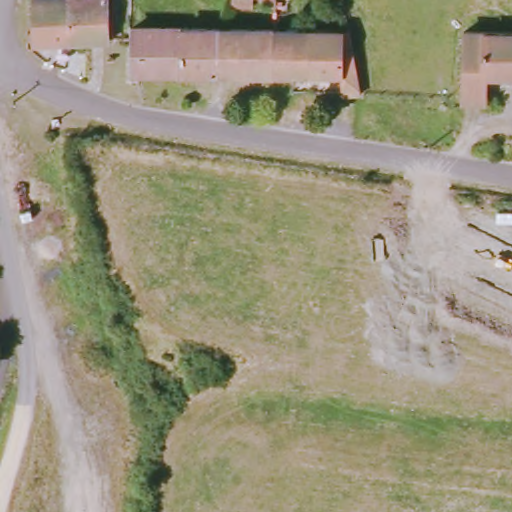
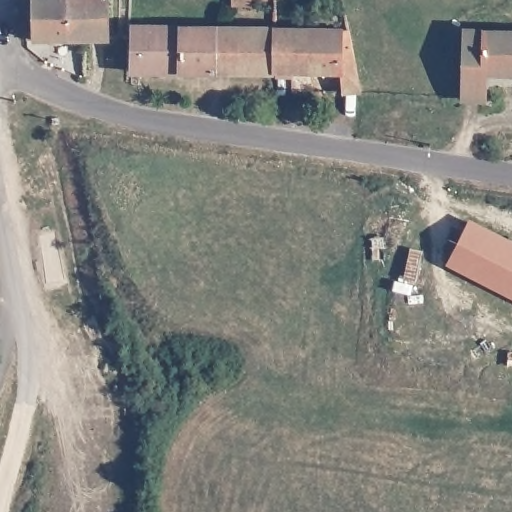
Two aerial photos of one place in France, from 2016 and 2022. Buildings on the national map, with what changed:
unchanged [(31,0),(106,0),(106,43),(34,43),(31,0)]
unchanged [(130,27),(228,28),(270,29),(275,29),(273,72),(130,70),(130,27)]
unchanged [(275,29),(306,30),(307,73),(273,72),(275,29)]
unchanged [(306,30),(344,30),(354,87),(342,87),(340,73),(307,73),(306,30)]
unchanged [(482,37),(482,75),(487,75),(486,100),(463,98),(463,37),(482,37)]
unchanged [(487,75),(482,75),(482,37),(512,37),(512,75),(487,75)]
new [(471,220),(512,241),(512,298),(447,265),(471,220)]

